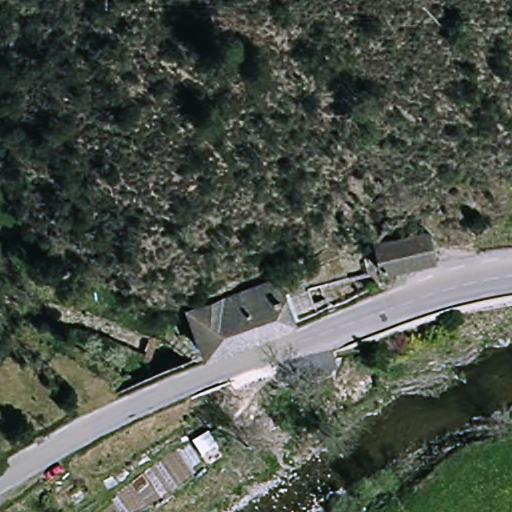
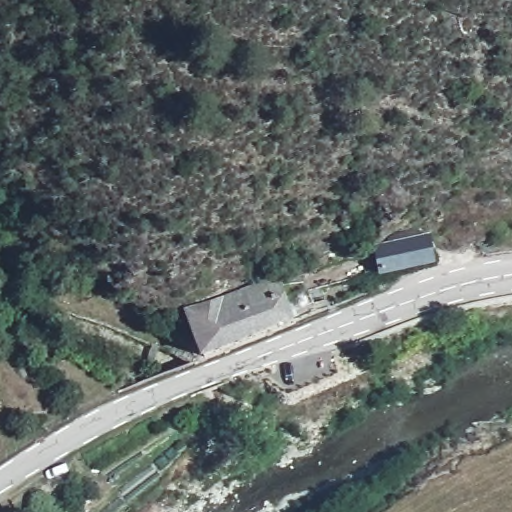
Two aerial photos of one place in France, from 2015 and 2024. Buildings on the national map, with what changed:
unchanged [(384,248),(435,240),(438,261),(388,269),(384,248)]
unchanged [(298,322),(207,358),(197,335),(187,308),(280,276),(284,286),(298,322)]

